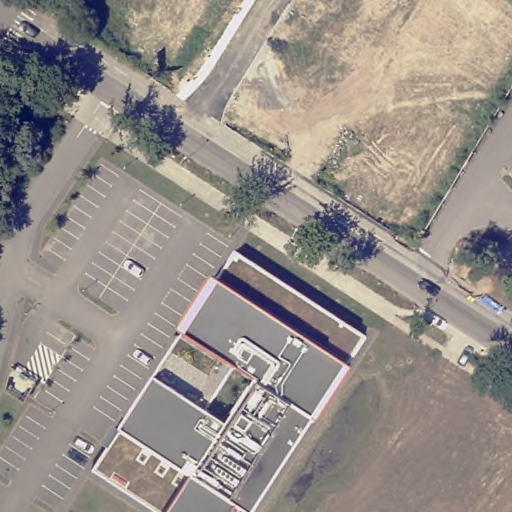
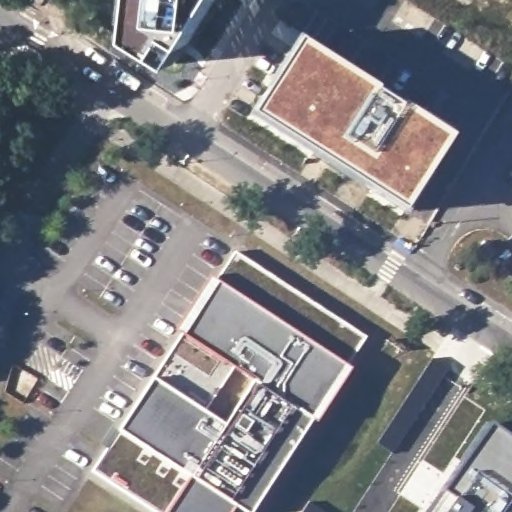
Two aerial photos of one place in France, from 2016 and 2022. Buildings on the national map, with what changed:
new [(185,54),(185,67),(173,76),(120,42),(120,7),(121,0),(229,0),(198,54),(185,54)]
new [(299,40),(449,134),(403,210),(250,114),(299,40)]
unchanged [(472,232),(484,245),(472,253),(462,240),(472,232)]
unchanged [(118,430),(183,335),(175,330),(210,275),(217,280),(234,251),(365,336),(346,366),(253,512),(156,512),(91,470),(118,430)]

